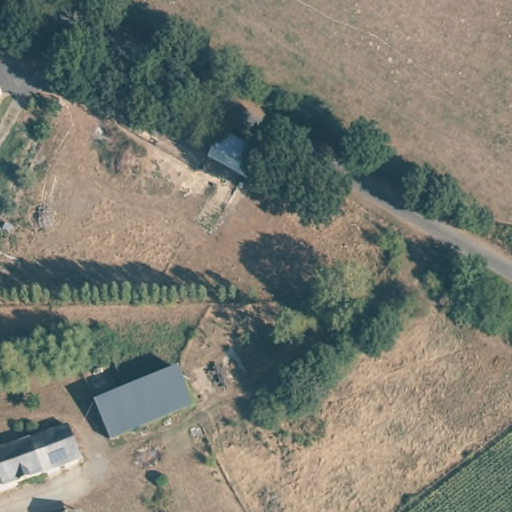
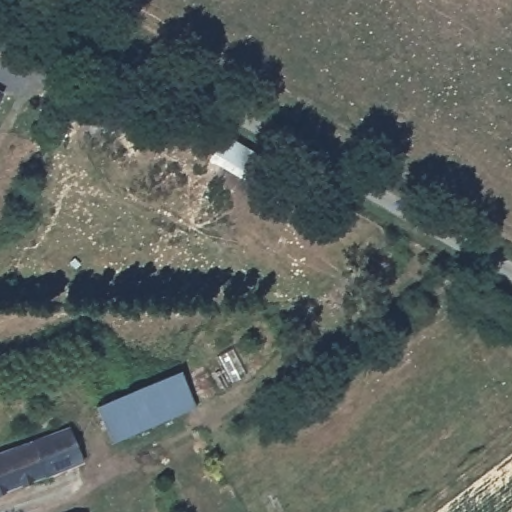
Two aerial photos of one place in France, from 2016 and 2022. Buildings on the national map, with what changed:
unchanged [(0,101),(0,91),(4,93),(0,101)]
unchanged [(109,436),(97,403),(182,372),(195,405),(109,436)]
unchanged [(33,439),(70,429),(81,466),(0,490),(0,430),(28,422),(33,439)]

